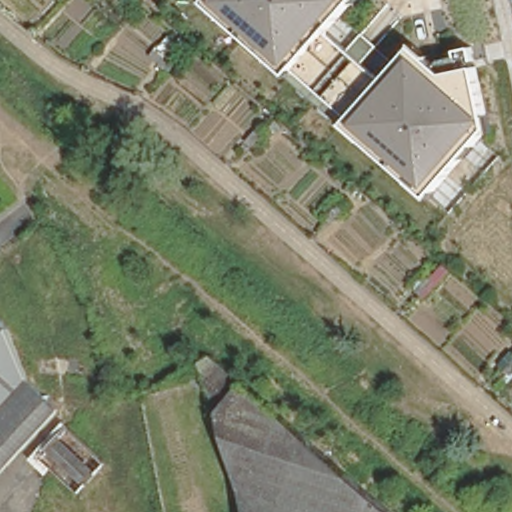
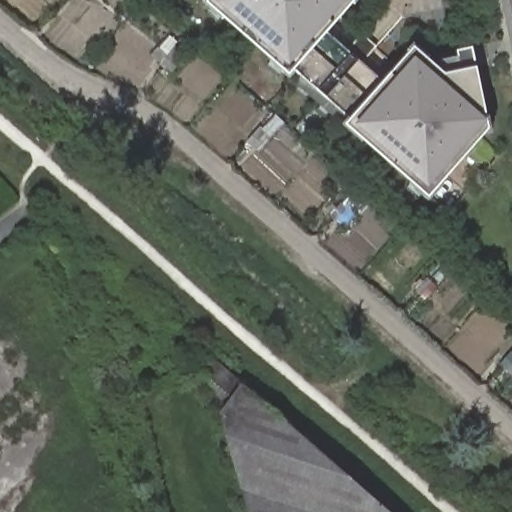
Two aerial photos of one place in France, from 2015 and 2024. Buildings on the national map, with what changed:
unchanged [(332,29),(387,77),(418,45),(446,72),(477,66),(493,133),(483,135),(429,195),(346,126),(353,116),(297,69),(290,77),(205,2),(207,0),(358,0),(332,29)]
demolished [(7,326),(26,378),(60,407),(0,471),(0,320),(7,326)]
unchanged [(224,400),(244,387),(384,512),(264,512),(241,448),(224,400)]
demolished [(103,464),(75,493),(39,460),(66,430),(103,464)]

